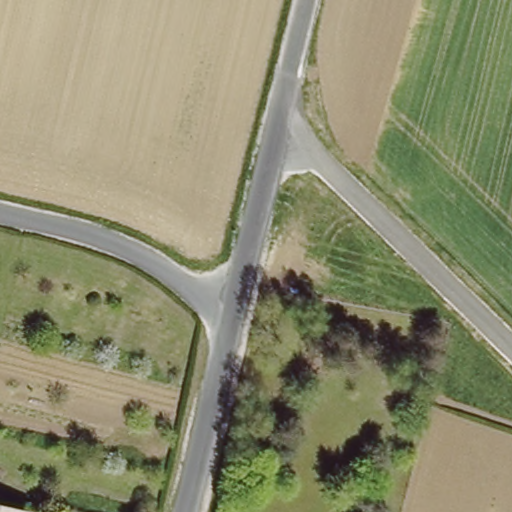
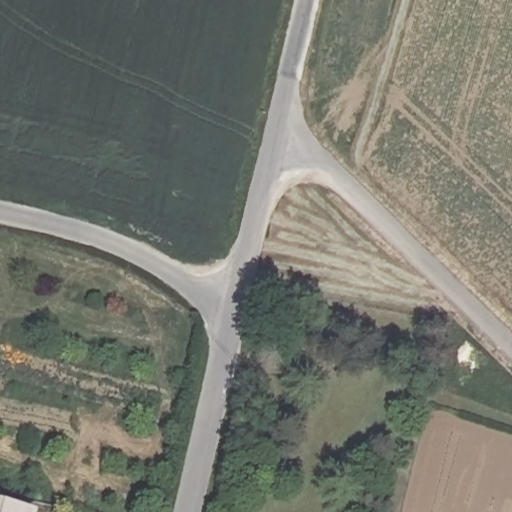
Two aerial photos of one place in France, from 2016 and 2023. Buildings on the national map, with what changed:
unchanged [(25,512),(0,512),(0,506),(25,512)]

